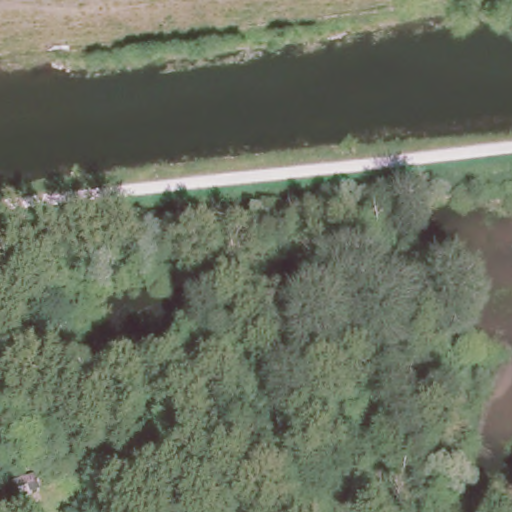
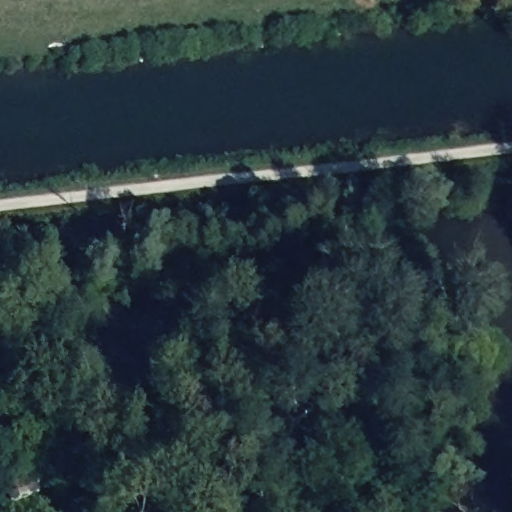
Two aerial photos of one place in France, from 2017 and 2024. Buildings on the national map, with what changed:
unchanged [(41,448),(45,463),(0,475),(0,460),(41,448)]
unchanged [(5,482),(32,474),(37,490),(10,498),(5,482)]

